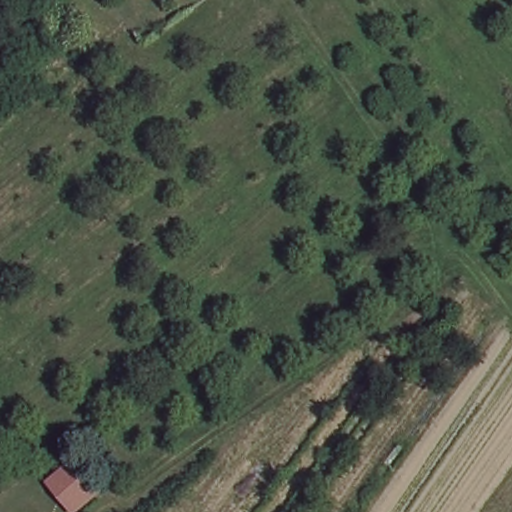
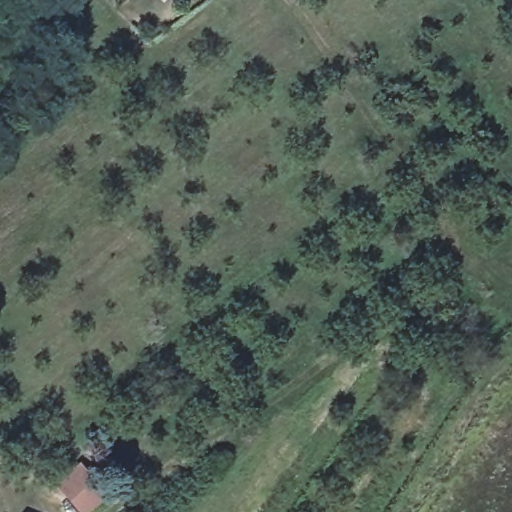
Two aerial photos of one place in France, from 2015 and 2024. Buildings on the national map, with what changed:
unchanged [(75,468),(100,494),(85,510),(59,486),(75,468)]

